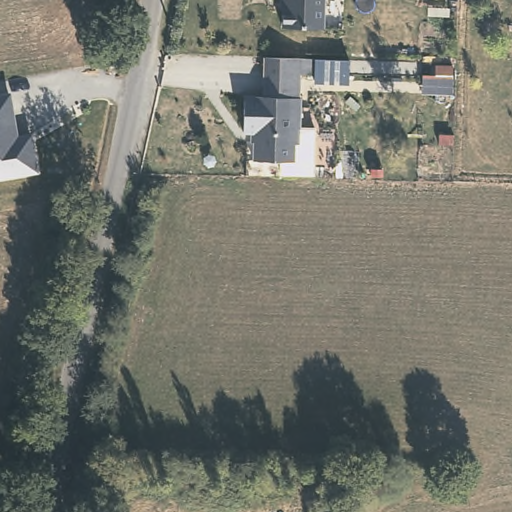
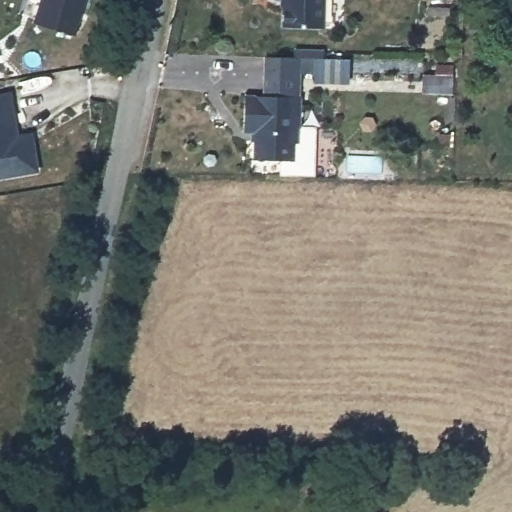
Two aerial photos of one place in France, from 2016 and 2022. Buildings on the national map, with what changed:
new [(34,24),(40,0),(85,0),(74,37),(34,24)]
unchanged [(281,21),(281,0),(322,0),(322,21),(281,21)]
unchanged [(297,96),(265,95),(266,54),(278,55),(298,55),(297,96)]
unchanged [(18,135),(32,133),(39,175),(0,180),(0,95),(12,93),(18,135)]
unchanged [(265,95),(297,96),(298,96),(297,141),(292,141),(292,160),(252,159),(252,130),(242,130),(244,94),(265,95)]

